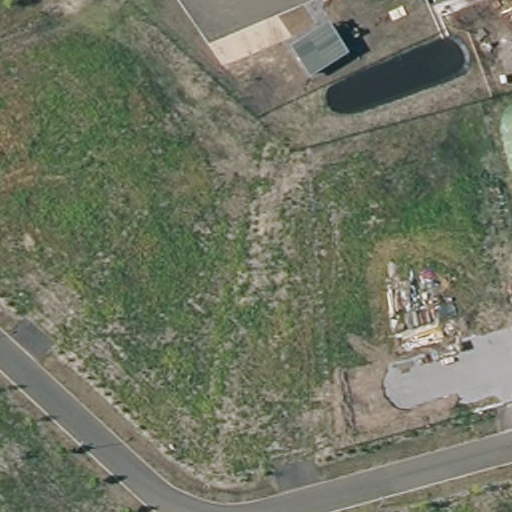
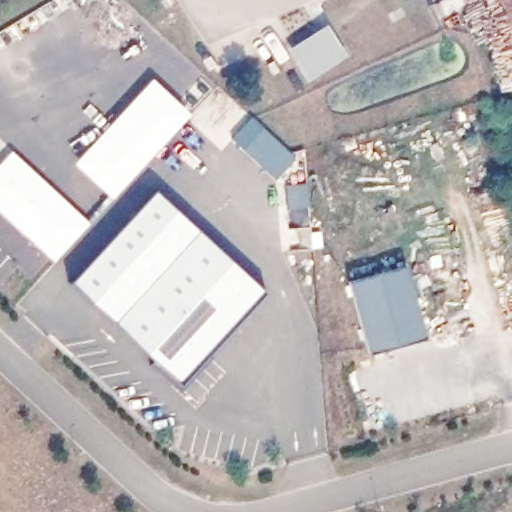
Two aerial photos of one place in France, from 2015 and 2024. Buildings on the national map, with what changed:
unchanged [(289,47),(327,23),(348,54),(309,79),(289,47)]
new [(76,162),(154,79),(191,114),(113,197),(76,162)]
new [(235,137),(253,117),(297,157),(277,177),(235,137)]
new [(0,166),(14,151),(91,223),(56,263),(0,210),(0,166)]
new [(76,280),(156,192),(264,290),(181,377),(76,280)]
new [(351,282),(409,267),(427,338),(369,353),(351,282)]

